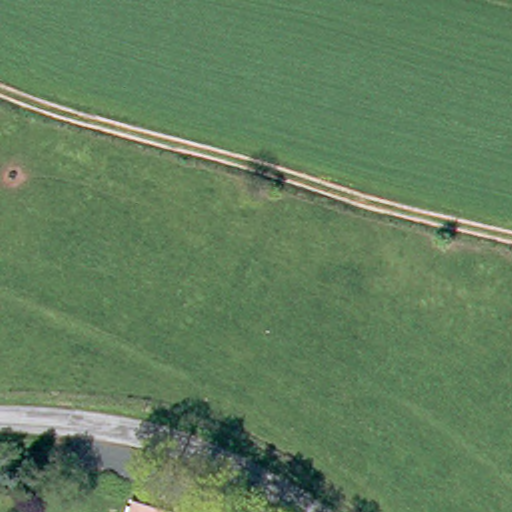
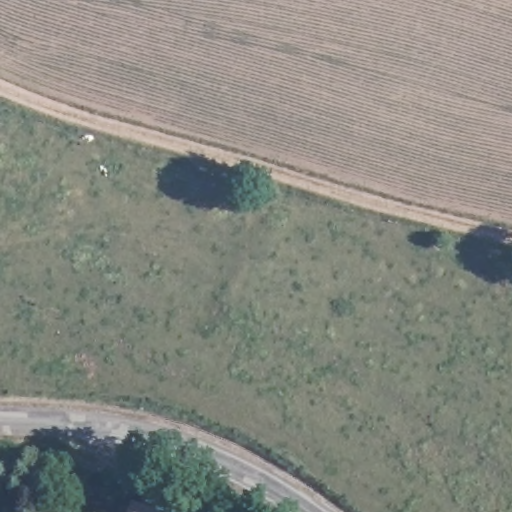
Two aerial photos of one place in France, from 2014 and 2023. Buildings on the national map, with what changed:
unchanged [(157,512),(124,512),(127,503),(157,512)]

